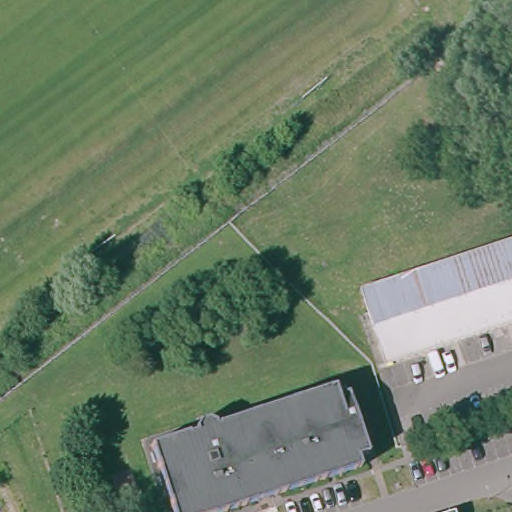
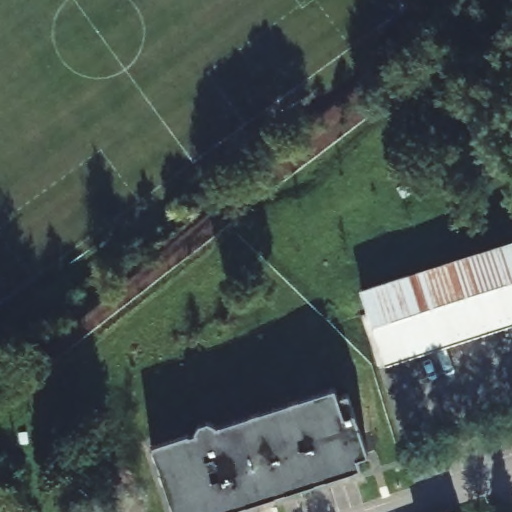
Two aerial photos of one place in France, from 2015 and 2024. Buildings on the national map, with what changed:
unchanged [(508,256),(512,269),(512,336),(378,380),(354,306),(508,256)]
unchanged [(144,447),(188,435),(186,430),(193,424),(201,421),(209,423),(211,425),(330,387),(334,397),(343,394),(362,456),(352,458),(356,469),(226,512),(166,512),(144,447)]
unchanged [(449,511),(449,512),(447,512),(449,511)]

